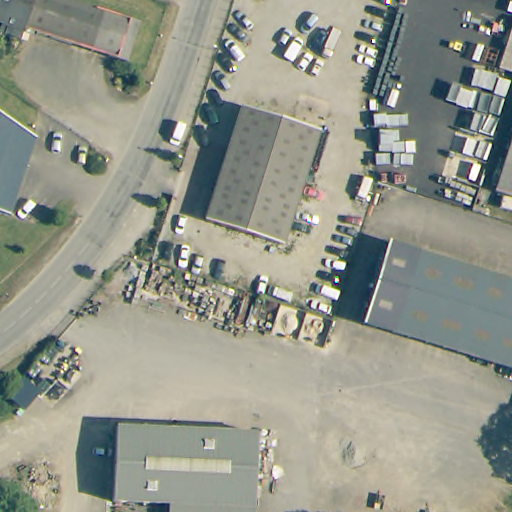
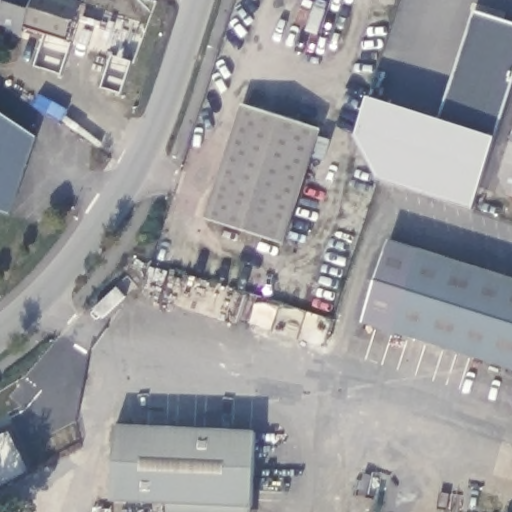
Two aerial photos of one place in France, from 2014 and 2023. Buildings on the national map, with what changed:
unchanged [(131,60),(27,28),(25,38),(0,31),(0,29),(2,20),(0,20),(0,0),(69,0),(144,23),(131,60)]
new [(496,139),(470,211),(375,181),(355,138),(367,97),(440,120),(473,12),(512,24),(512,89),(496,139)]
unchanged [(244,102),(322,128),(283,243),(206,217),(244,102)]
unchanged [(10,216),(0,213),(0,115),(35,137),(10,216)]
unchanged [(512,143),(512,193),(497,188),(512,143)]
unchanged [(393,236),(455,260),(512,278),(512,371),(365,319),(393,236)]
unchanged [(256,427),(255,501),(171,500),(114,499),(115,425),(256,427)]
new [(34,474),(0,491),(0,436),(10,431),(34,474)]
unchanged [(171,512),(171,500),(255,501),(255,512),(171,512)]

